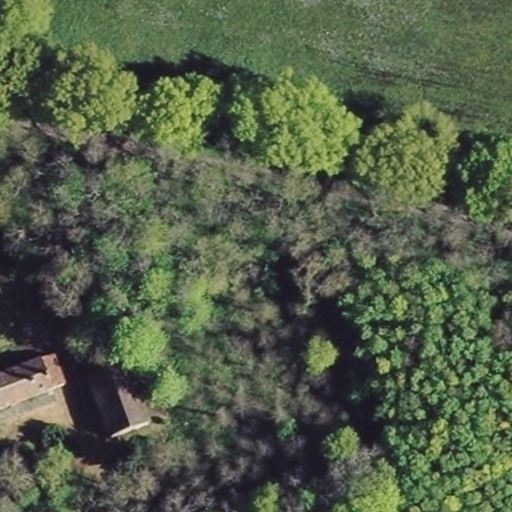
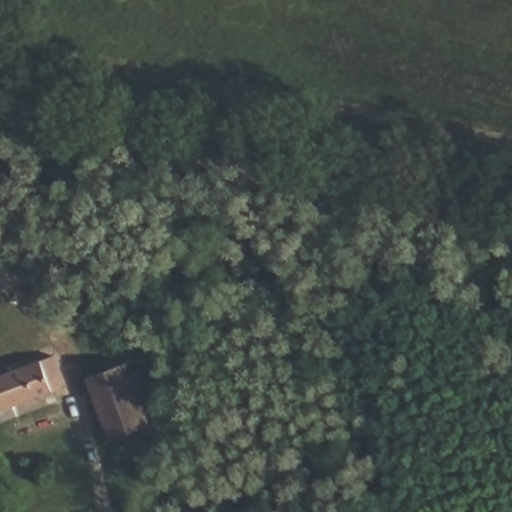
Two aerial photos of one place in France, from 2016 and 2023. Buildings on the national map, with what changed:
unchanged [(43,356),(53,386),(0,405),(0,372),(43,356)]
unchanged [(148,424),(111,438),(88,377),(124,363),(148,424)]

